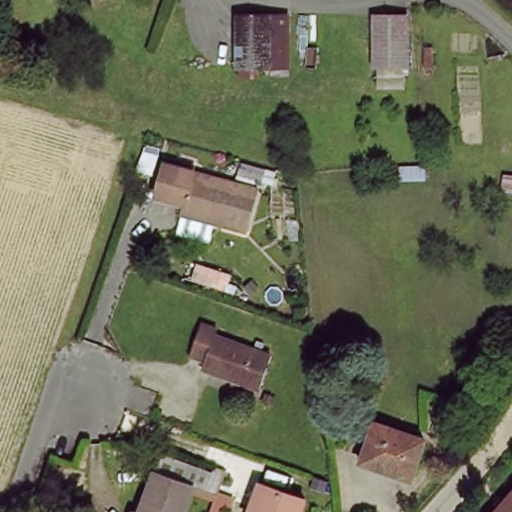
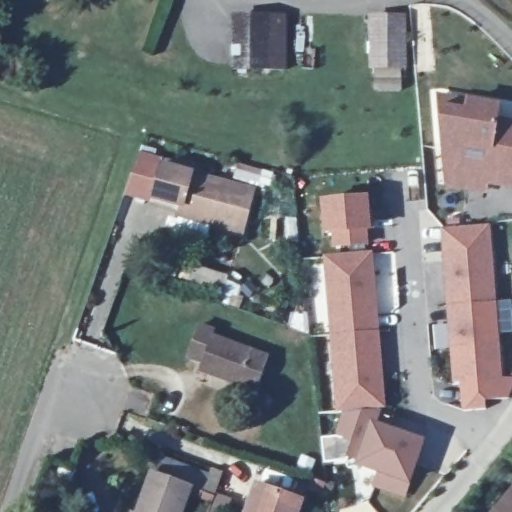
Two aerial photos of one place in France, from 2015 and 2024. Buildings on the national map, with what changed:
unchanged [(404,21),(407,72),(375,72),(373,20),(404,21)]
unchanged [(288,22),(288,75),(233,75),(235,22),(288,22)]
new [(438,105),(437,94),(466,97),(502,105),(499,118),(512,120),(512,190),(488,185),(486,195),(446,187),(438,105)]
unchanged [(241,233),(178,215),(180,202),(162,197),(150,194),(158,166),(169,169),(250,189),(241,233)]
new [(368,231),(369,244),(333,249),(330,235),(324,235),(321,201),(369,196),(372,230),(368,231)]
new [(440,230),(450,229),(448,220),(461,219),(462,228),(478,226),(490,225),(503,381),(454,387),(440,230)]
new [(376,409),(337,413),(323,257),(373,252),(387,408),(376,409)]
new [(191,263),(224,274),(219,289),(186,278),(191,263)]
unchanged [(221,332),(223,339),(273,356),(261,390),(206,372),(208,363),(191,357),(201,326),(221,332)]
new [(374,425),(371,424),(360,464),(359,467),(355,466),(356,461),(340,455),(337,431),(343,414),(382,411),(374,425)]
unchanged [(408,485),(359,467),(371,424),(422,443),(425,444),(408,485)]
new [(408,485),(406,499),(372,487),(378,474),(408,485)]
unchanged [(151,477),(196,492),(189,512),(140,512),(151,477)]
unchanged [(301,512),(249,512),(256,491),(269,495),(303,507),(301,512)]
unchanged [(512,498),(512,512),(500,512),(512,498)]

